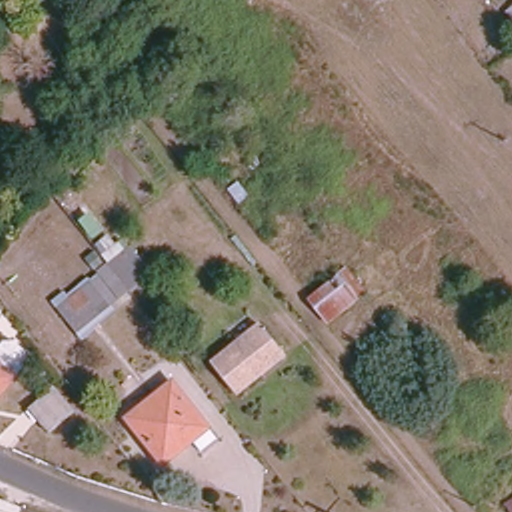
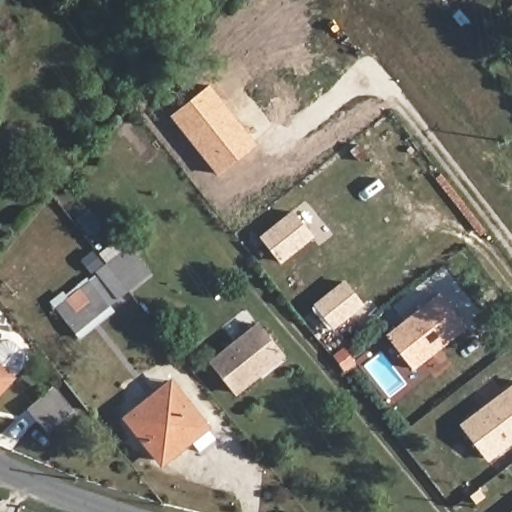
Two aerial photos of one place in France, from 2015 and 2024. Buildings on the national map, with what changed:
new [(170,116),(209,85),(256,144),(217,176),(170,116)]
unchanged [(241,203),(230,190),(237,183),(248,197),(241,203)]
new [(282,264),(260,237),(294,210),(316,237),(282,264)]
unchanged [(61,313),(119,267),(124,274),(142,258),(155,274),(136,290),(79,338),(61,313)]
unchanged [(331,325),(312,301),(342,277),(360,300),(331,325)]
new [(415,370),(387,334),(440,292),(468,328),(415,370)]
unchanged [(255,324),(280,356),(231,395),(207,363),(255,324)]
unchanged [(10,379),(0,390),(0,369),(10,379)]
unchanged [(217,439),(201,452),(191,441),(162,463),(133,426),(127,418),(142,406),(172,382),(217,439)]
new [(458,425),(512,385),(512,444),(488,462),(458,425)]
unchanged [(50,393),(69,416),(48,432),(29,409),(50,393)]
demolished [(512,498),(512,512),(487,512),(512,498)]

